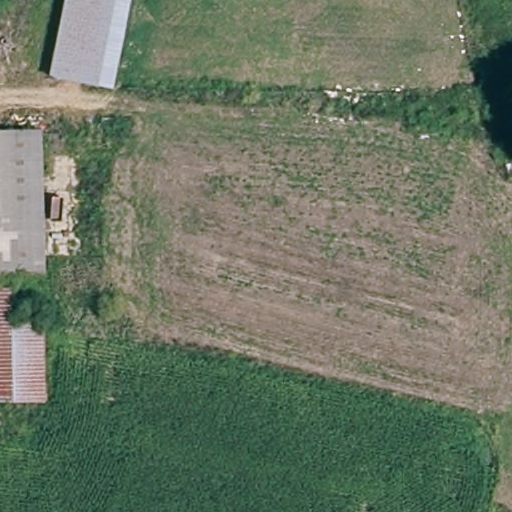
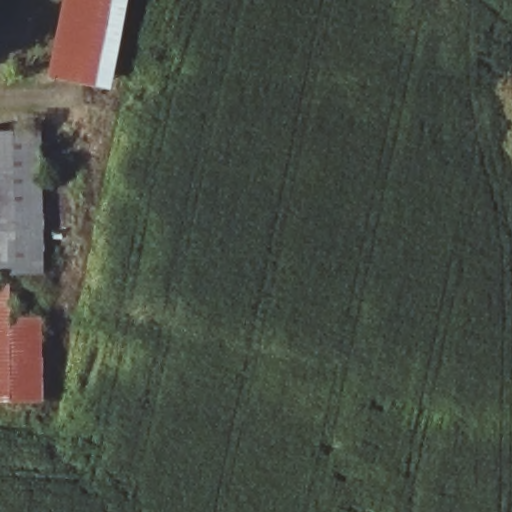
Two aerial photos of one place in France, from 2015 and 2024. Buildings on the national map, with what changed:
unchanged [(76,0),(126,0),(100,86),(53,73),(76,0)]
unchanged [(23,249),(0,251),(0,151),(17,150),(23,249)]
unchanged [(41,150),(47,246),(23,249),(17,150),(41,150)]
unchanged [(44,398),(0,401),(0,282),(4,282),(7,322),(41,320),(42,353),(44,398)]

